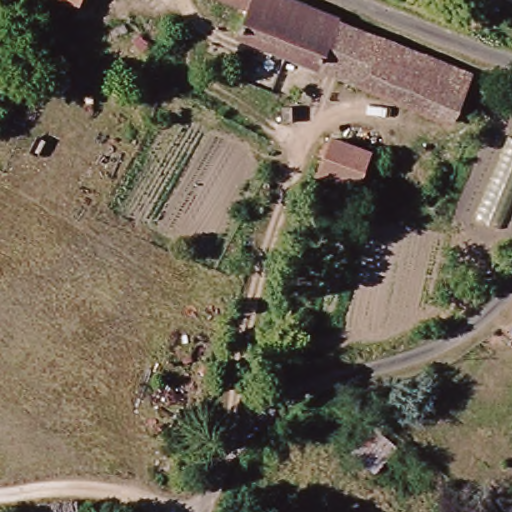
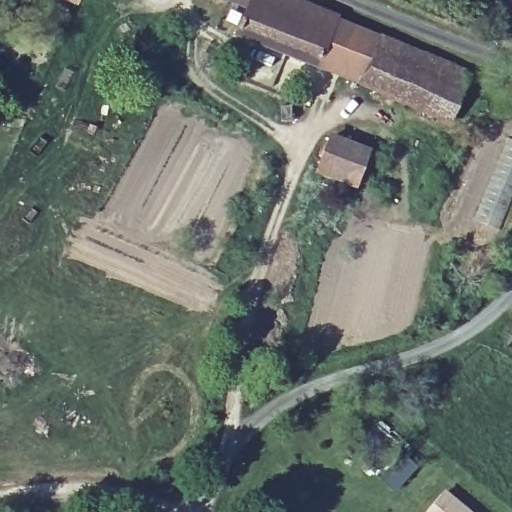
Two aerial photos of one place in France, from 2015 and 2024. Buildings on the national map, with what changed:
unchanged [(83,8),(64,0),(86,0),(83,8)]
unchanged [(427,54),(473,73),(453,121),(244,34),(251,16),(217,0),(295,0),(336,17),(338,22),(422,58),(427,54)]
unchanged [(355,187),(318,172),(331,140),(368,155),(355,187)]
new [(470,512),(432,512),(448,493),(470,512)]

